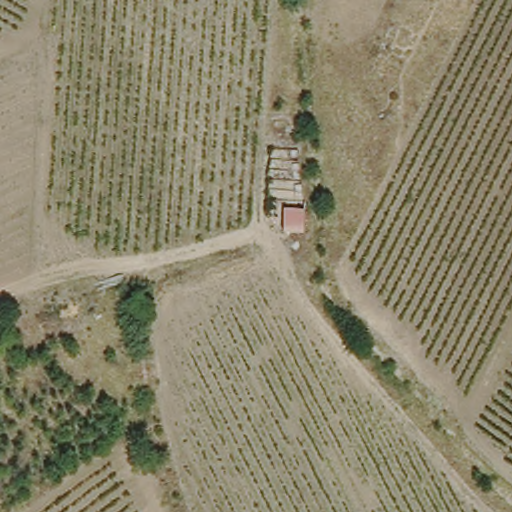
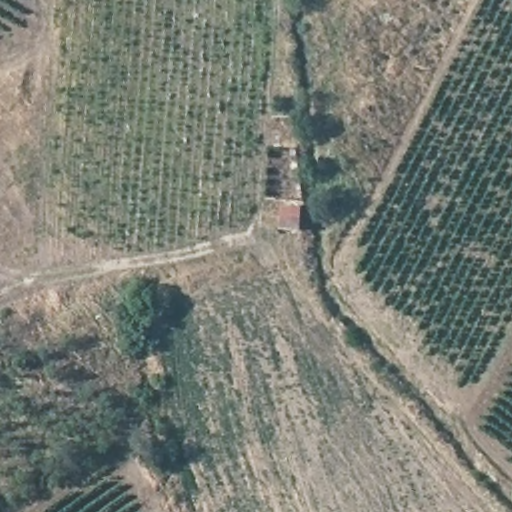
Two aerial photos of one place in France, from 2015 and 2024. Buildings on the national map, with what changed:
unchanged [(294,209),(302,227),(289,232),(282,215),(294,209)]

